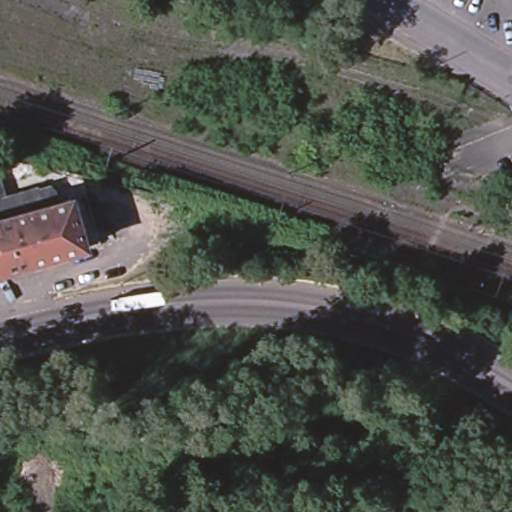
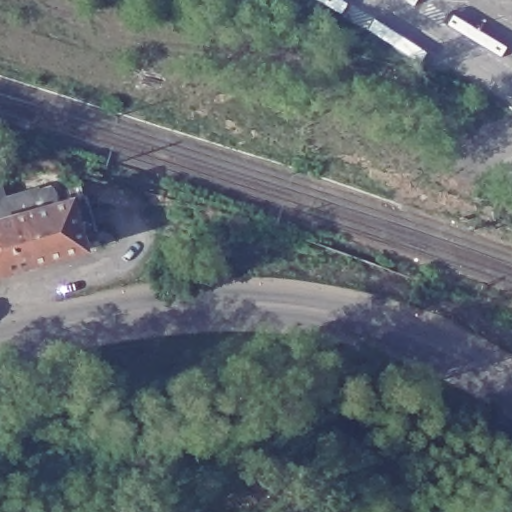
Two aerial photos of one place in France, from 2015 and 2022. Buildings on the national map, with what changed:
unchanged [(0,201),(0,182),(5,200),(0,201)]
unchanged [(0,277),(0,201),(5,200),(38,190),(39,192),(50,188),(56,195),(59,205),(71,202),(87,252),(0,277)]

